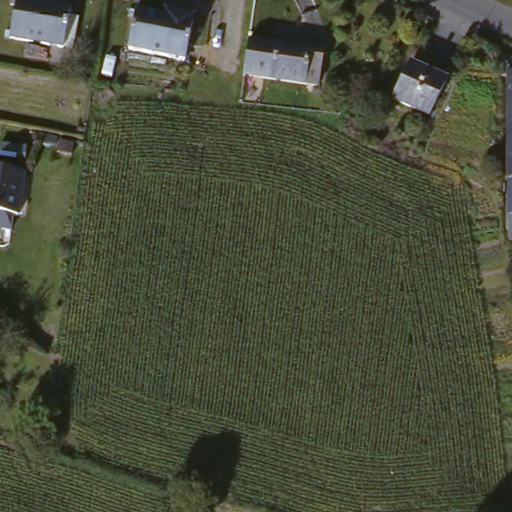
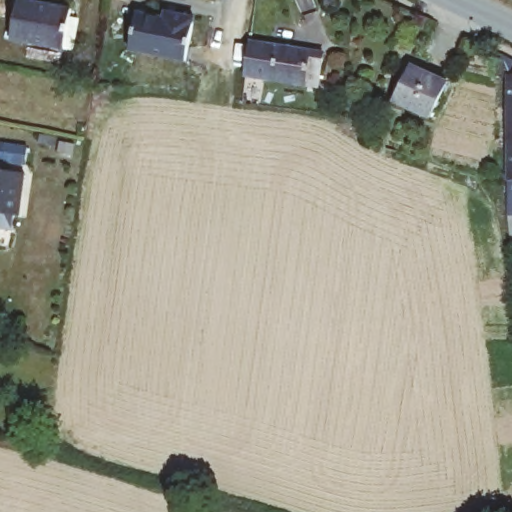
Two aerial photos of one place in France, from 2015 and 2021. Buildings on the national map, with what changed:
unchanged [(67,10),(61,46),(10,38),(14,1),(67,10)]
unchanged [(131,14),(162,18),(162,14),(191,17),(185,59),(127,51),(131,14)]
unchanged [(324,51),(317,85),(244,75),(251,40),(324,51)]
unchanged [(507,75),(501,74),(503,55),(512,57),(512,133),(505,132),(507,75)]
unchanged [(431,120),(393,102),(412,59),(451,79),(431,120)]
unchanged [(512,234),(505,234),(502,210),(505,132),(512,133),(512,234)]
unchanged [(25,145),(24,161),(0,160),(0,143),(25,145)]
unchanged [(24,170),(22,214),(17,213),(16,228),(0,227),(0,169),(24,170)]

